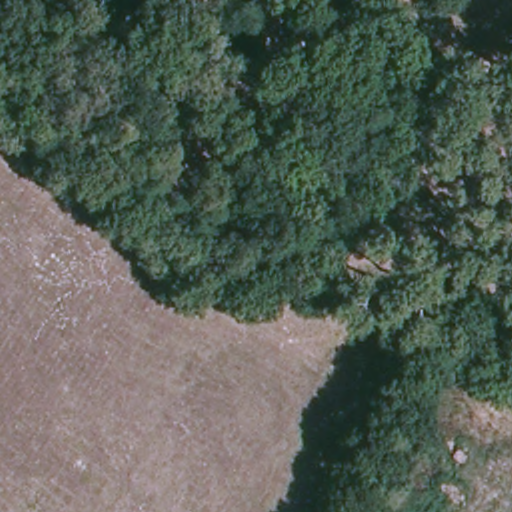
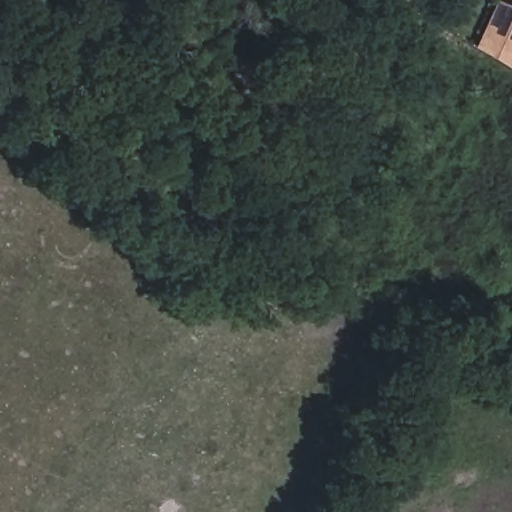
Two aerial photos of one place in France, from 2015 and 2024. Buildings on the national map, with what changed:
new [(512,12),(512,64),(478,48),(498,5),(512,12)]

